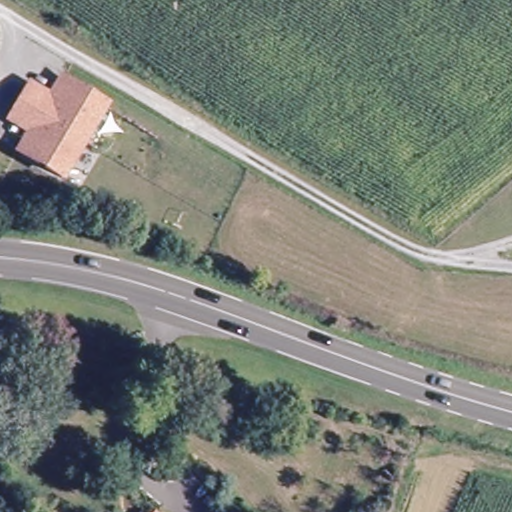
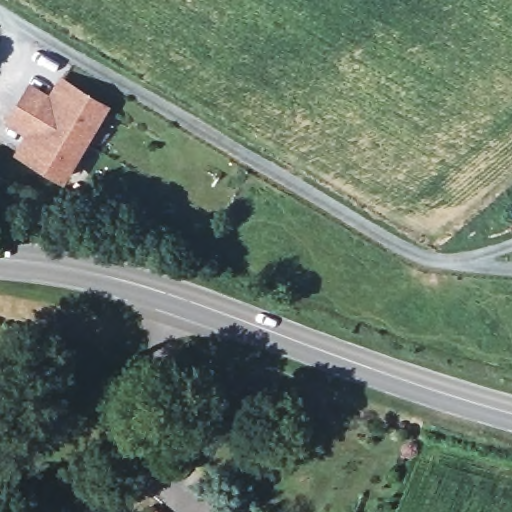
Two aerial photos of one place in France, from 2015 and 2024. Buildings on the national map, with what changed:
unchanged [(51,94),(61,76),(111,105),(65,183),(14,154),(25,135),(5,123),(29,81),(51,94)]

